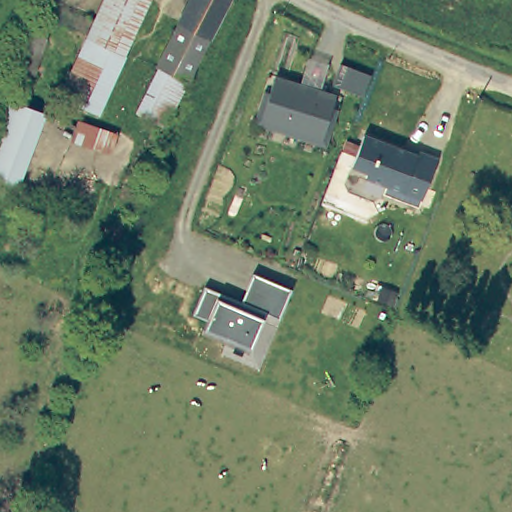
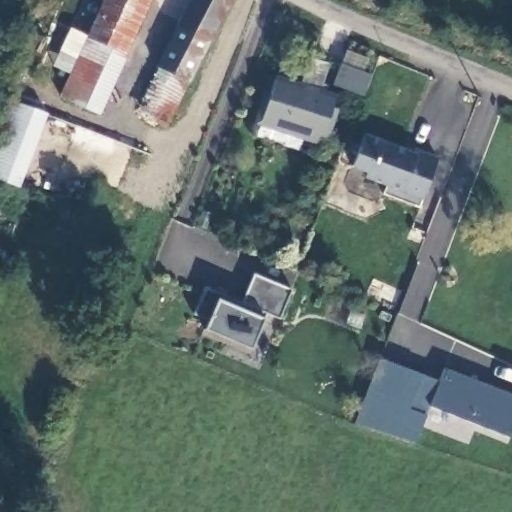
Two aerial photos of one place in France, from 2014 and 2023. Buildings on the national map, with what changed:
unchanged [(147,0),(123,54),(86,36),(103,0),(147,0)]
unchanged [(226,0),(187,76),(159,63),(155,61),(186,0),(226,0)]
unchanged [(34,73),(18,69),(29,33),(44,38),(34,73)]
unchanged [(123,54),(98,114),(59,95),(86,36),(123,54)]
unchanged [(323,140),(261,121),(269,94),(274,81),(278,82),(279,78),(301,84),(308,61),(328,66),(320,90),(321,91),(337,95),(334,101),(330,114),(323,140)]
unchanged [(187,76),(164,121),(136,107),(159,63),(187,76)]
unchanged [(261,121),(323,140),(330,114),(336,116),(325,151),(253,129),(264,92),(269,94),(261,121)]
unchanged [(19,185),(0,178),(0,113),(5,98),(45,113),(19,183),(19,185)]
unchanged [(117,133),(110,152),(70,138),(78,119),(117,133)]
unchanged [(416,150),(436,158),(418,208),(382,193),(385,185),(364,177),(366,172),(351,165),(363,134),(414,154),(416,150)]
unchanged [(279,317),(265,310),(262,319),(250,351),(205,332),(209,321),(193,314),(204,286),(241,301),(254,275),(290,290),(279,317)]
new [(426,414),(408,408),(403,423),(421,429),(416,443),(397,436),(354,424),(380,359),(439,382),(444,368),(512,394),(512,429),(509,436),(430,406),(426,414)]

